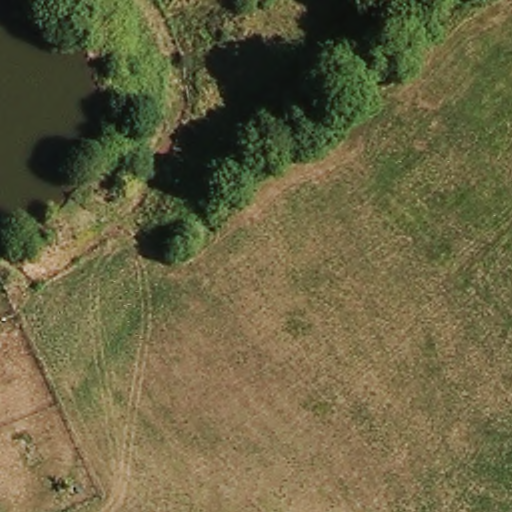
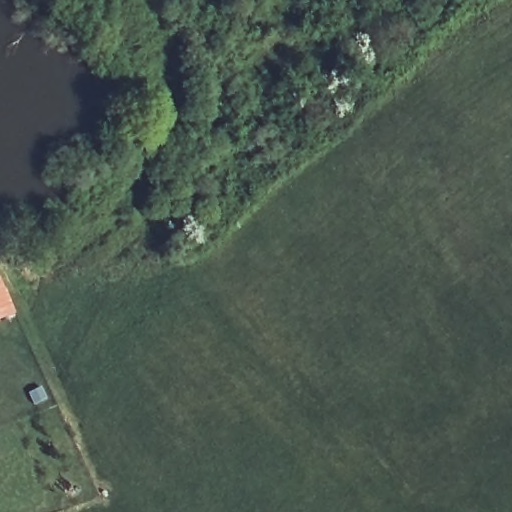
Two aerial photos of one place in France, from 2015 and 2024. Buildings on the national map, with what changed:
new [(16,313),(0,319),(0,278),(16,313)]

